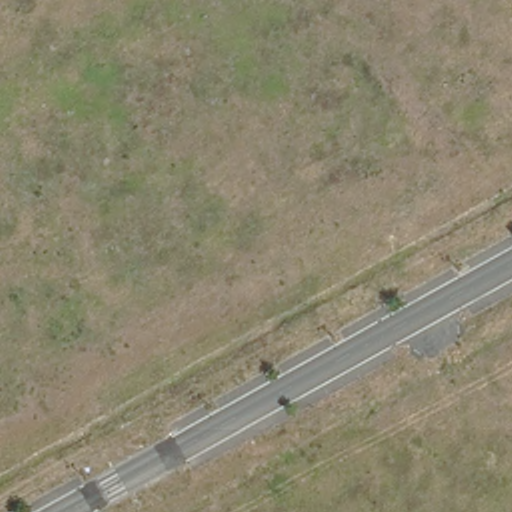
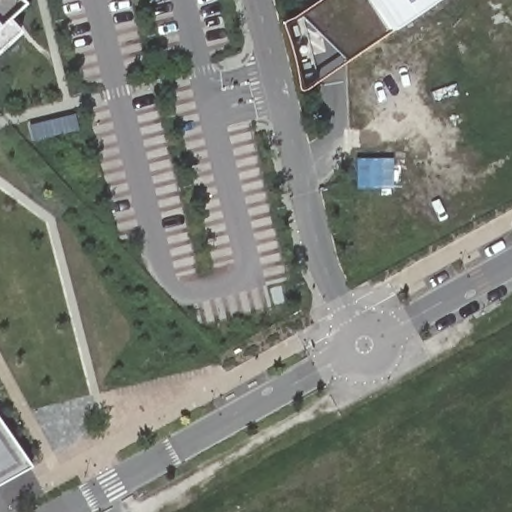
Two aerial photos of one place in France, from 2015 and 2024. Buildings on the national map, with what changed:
new [(5,17),(0,22),(0,0),(12,0),(17,6),(5,17)]
new [(369,0),(391,32),(302,91),(285,25),(324,0),(369,0)]
new [(437,0),(391,32),(369,0),(437,0)]
new [(20,33),(0,53),(0,22),(5,17),(20,33)]
new [(0,485),(0,423),(31,467),(0,485)]

